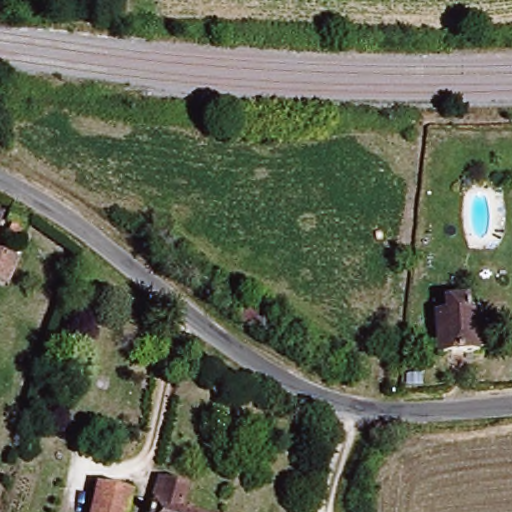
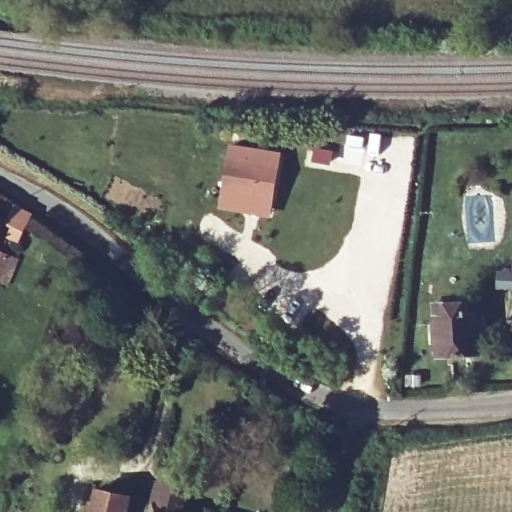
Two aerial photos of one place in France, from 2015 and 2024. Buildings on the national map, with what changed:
new [(346,132),(366,135),(361,163),(342,159),(346,132)]
new [(229,142),(284,151),(270,217),(216,208),(229,142)]
unchanged [(39,211),(26,245),(10,239),(14,230),(4,224),(13,204),(39,211)]
unchanged [(0,277),(0,256),(10,260),(0,277)]
unchanged [(479,350),(433,350),(432,308),(441,307),(442,296),(469,296),(469,308),(479,308),(479,350)]
unchanged [(164,500),(168,483),(190,487),(186,509),(198,512),(157,512),(161,500),(164,500)]
unchanged [(133,493),(128,512),(91,512),(98,484),(133,493)]

